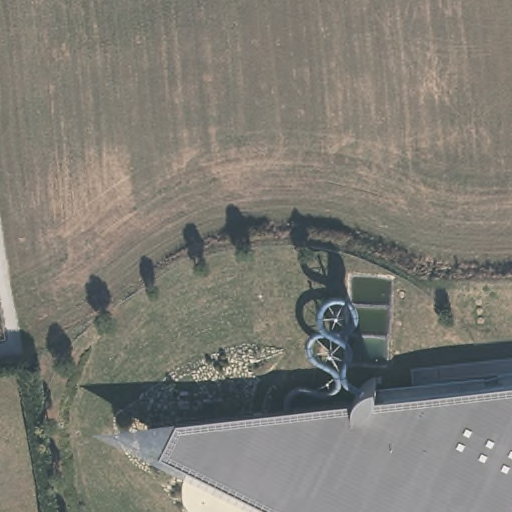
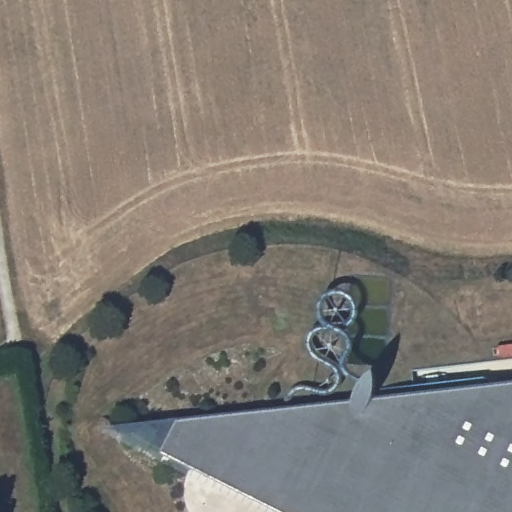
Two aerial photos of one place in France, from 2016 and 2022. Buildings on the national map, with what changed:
unchanged [(200,417),(353,399),(357,391),(363,382),(369,378),(373,382),(376,388),(383,387),(485,377),(487,385),(512,382),(512,512),(281,512),(162,451),(179,420),(200,417)]
unchanged [(101,428),(179,420),(162,451),(101,428)]

